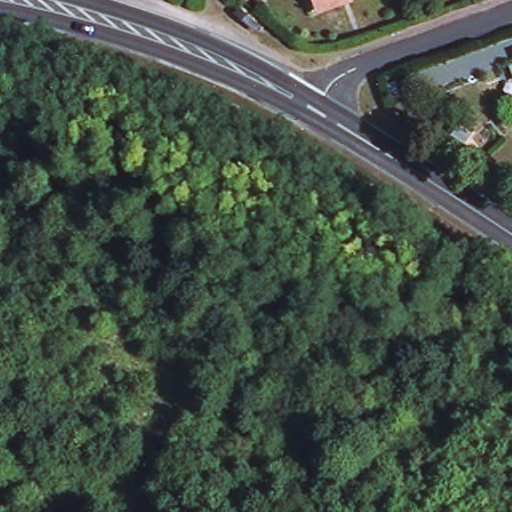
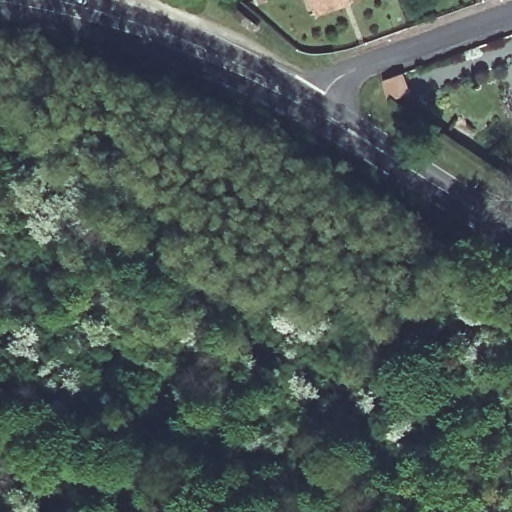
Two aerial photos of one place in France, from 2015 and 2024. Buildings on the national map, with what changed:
unchanged [(318,13),(315,4),(314,0),(351,0),(351,1),(318,13)]
unchanged [(259,25),(254,30),(239,17),(244,11),(259,25)]

